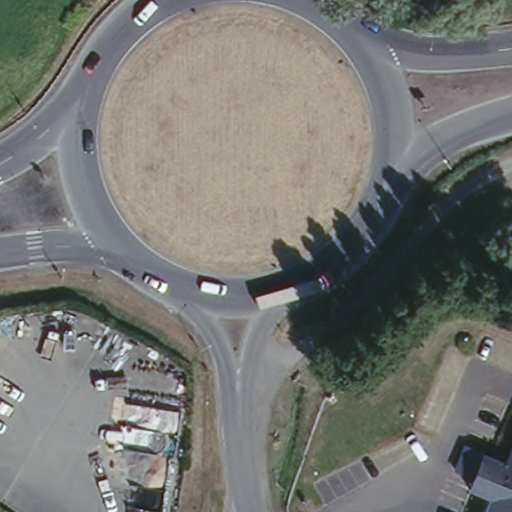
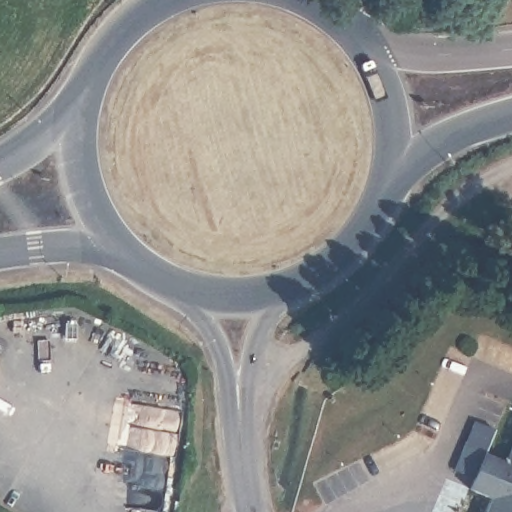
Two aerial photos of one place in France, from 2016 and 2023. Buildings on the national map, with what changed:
unchanged [(506,460),(512,447),(512,512),(483,512),(491,495),(480,490),(469,485),(474,473),(455,466),(465,442),(506,460)]

